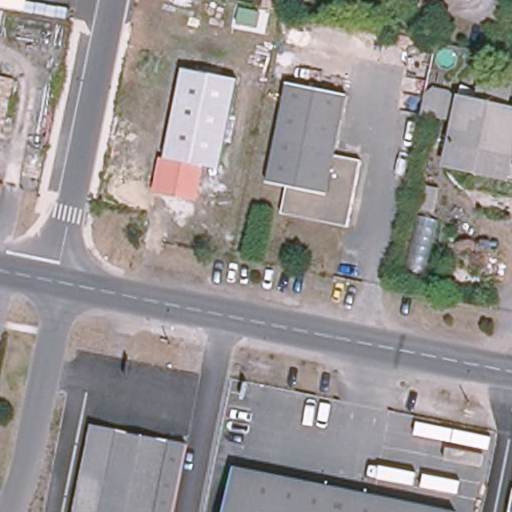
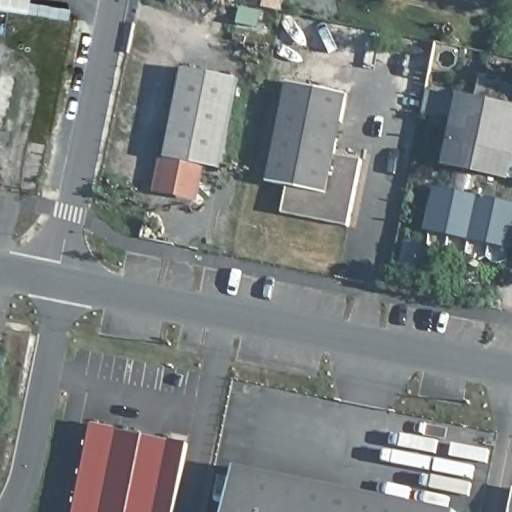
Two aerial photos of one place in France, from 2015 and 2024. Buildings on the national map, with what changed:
unchanged [(19,15),(0,10),(0,0),(22,0),(19,15)]
unchanged [(153,192),(159,157),(164,158),(182,68),(237,80),(219,170),(204,166),(197,201),(153,192)]
unchanged [(348,232),(282,218),(288,191),(267,187),(288,87),(348,100),(335,160),(362,165),(348,232)]
unchanged [(508,178),(446,165),(461,98),(512,109),(512,157),(508,178)]
new [(426,230),(435,187),(512,203),(512,249),(426,230)]
unchanged [(174,512),(75,512),(76,506),(92,424),(118,429),(169,440),(169,439),(188,443),(176,503),(174,512)]
unchanged [(226,512),(235,466),(426,503),(457,511),(456,512),(226,512)]

